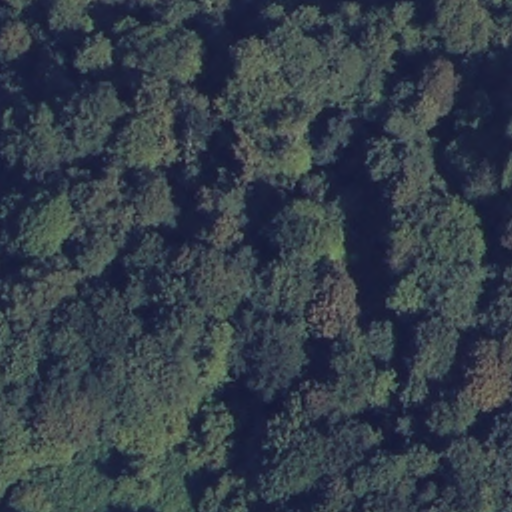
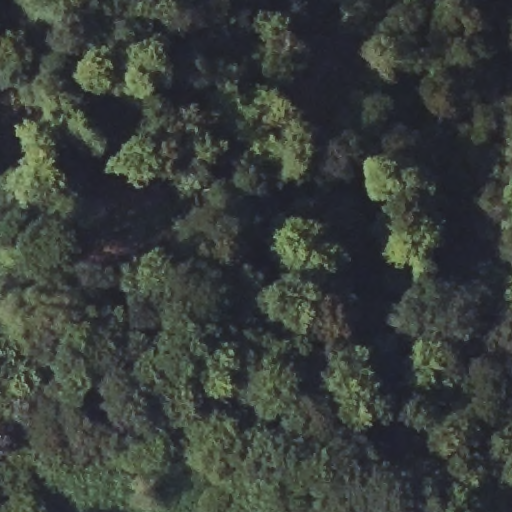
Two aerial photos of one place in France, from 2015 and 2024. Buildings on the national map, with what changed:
unchanged [(297,496),(269,497),(266,457),(293,457),(297,496)]

